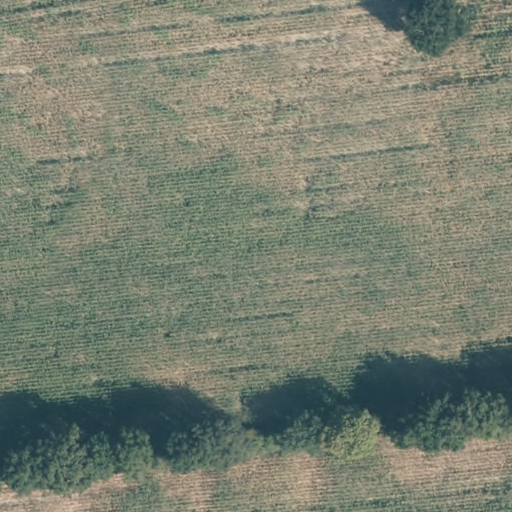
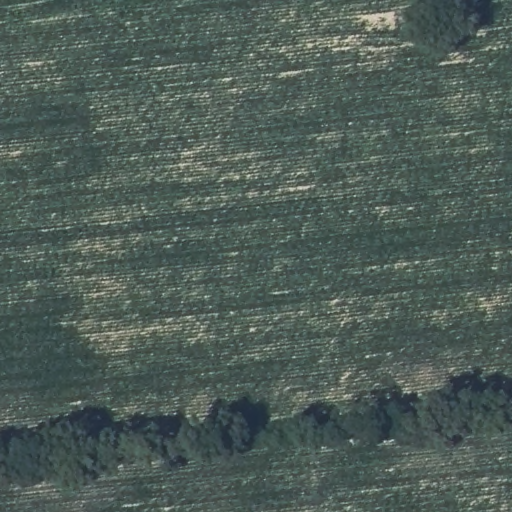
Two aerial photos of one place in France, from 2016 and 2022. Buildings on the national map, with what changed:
[]

